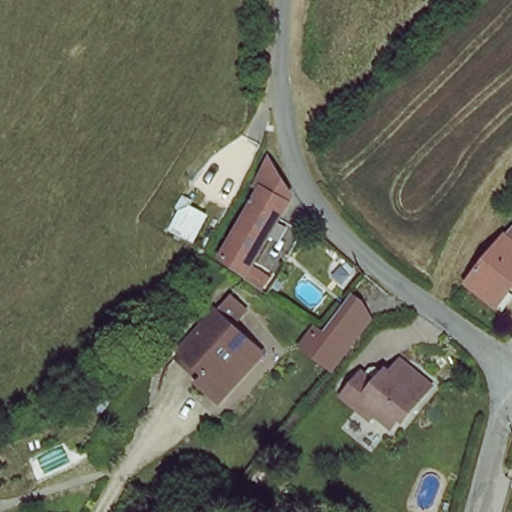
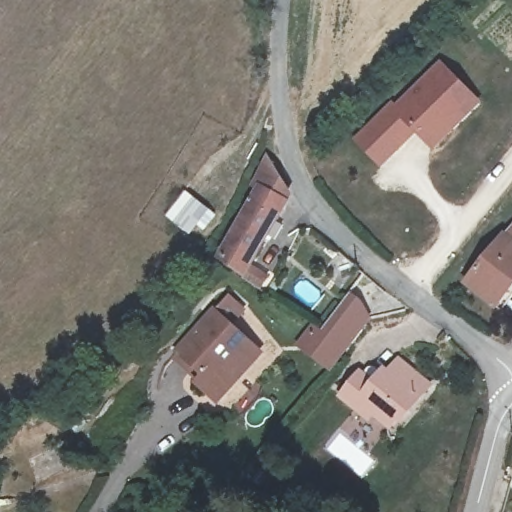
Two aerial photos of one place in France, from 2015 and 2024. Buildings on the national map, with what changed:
new [(395,99),(440,55),(467,83),(477,93),(450,119),(431,138),(413,120),(378,154),(355,130),(391,95),(395,99)]
unchanged [(289,207),(245,279),(221,263),(228,246),(260,193),(254,190),(270,163),(275,171),(281,180),(292,195),(289,207)]
unchanged [(502,307),(470,284),(502,243),(508,235),(512,230),(512,293),(502,307)]
unchanged [(183,352),(232,296),(248,309),(235,325),(255,342),(266,352),(248,371),(223,400),(202,382),(203,380),(178,358),(183,352)]
unchanged [(368,324),(330,372),(298,345),(310,329),(320,335),(322,331),(342,309),(350,299),(360,307),(365,317),(368,324)]
unchanged [(361,411),(347,400),(365,375),(368,378),(373,372),(378,371),(385,376),(387,371),(392,375),(402,362),(433,385),(423,398),(420,396),(397,427),(380,415),(375,421),(361,411)]
unchanged [(273,476),(262,492),(249,483),(260,467),(273,476)]

